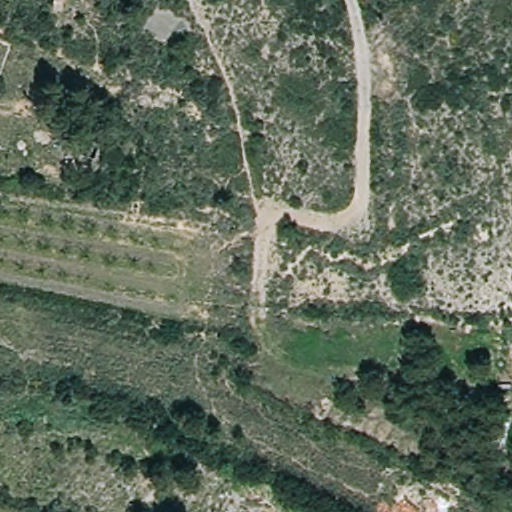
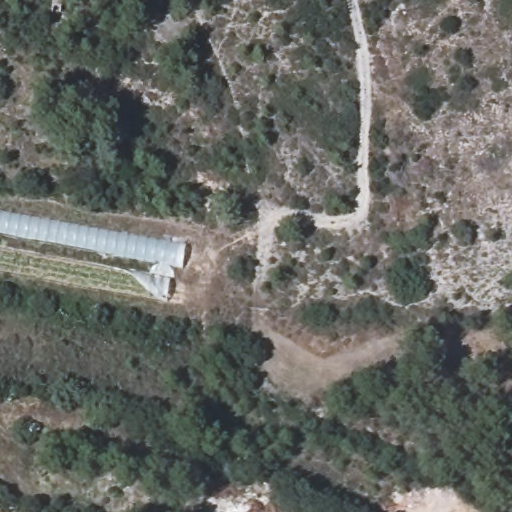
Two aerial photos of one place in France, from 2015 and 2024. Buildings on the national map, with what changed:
unchanged [(50,1),(50,0),(65,0),(65,4),(50,1)]
unchanged [(92,179),(70,172),(77,142),(97,147),(92,179)]
new [(0,235),(0,210),(184,245),(180,269),(0,235)]

